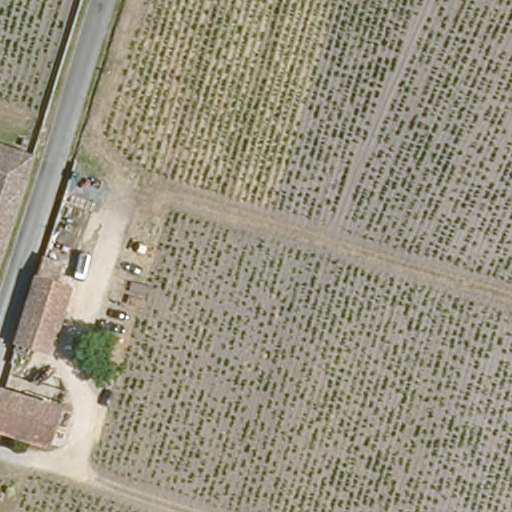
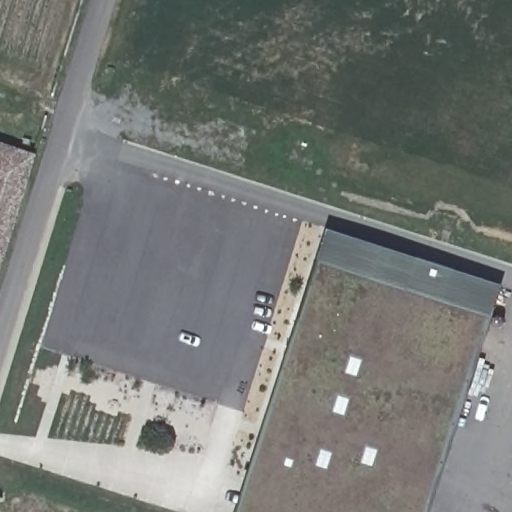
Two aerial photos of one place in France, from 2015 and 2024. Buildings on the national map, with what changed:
unchanged [(0,145),(29,155),(0,244),(0,145)]
new [(428,512),(236,512),(325,227),(500,283),(428,512)]
demolished [(43,257),(72,266),(45,351),(16,343),(43,257)]

